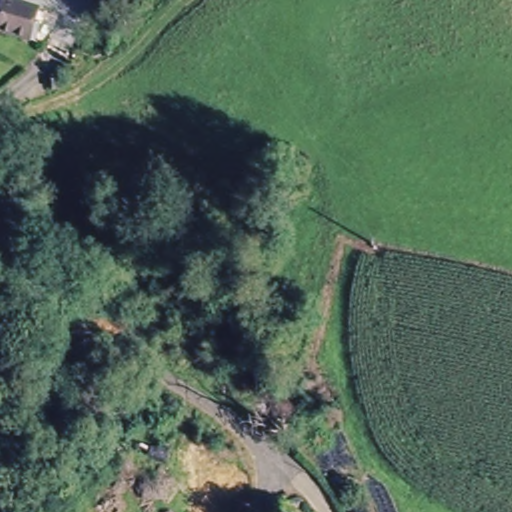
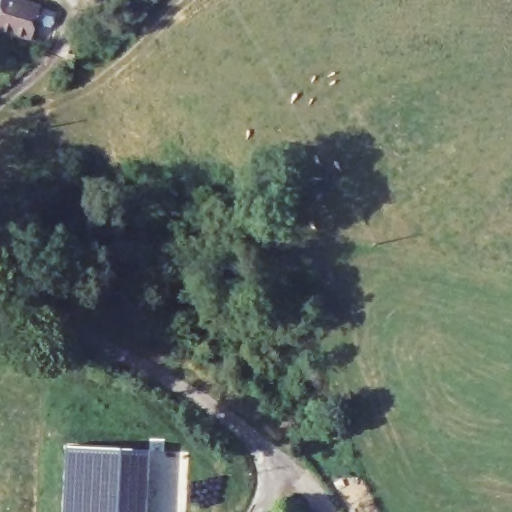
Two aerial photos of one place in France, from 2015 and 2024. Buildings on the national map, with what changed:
unchanged [(0,28),(0,3),(5,4),(7,0),(17,0),(41,3),(40,19),(46,19),(44,37),(38,35),(30,33),(4,31),(1,23),(0,28)]
new [(63,445),(148,448),(148,439),(164,439),(164,451),(181,452),(181,508),(181,512),(60,512),(63,445)]

